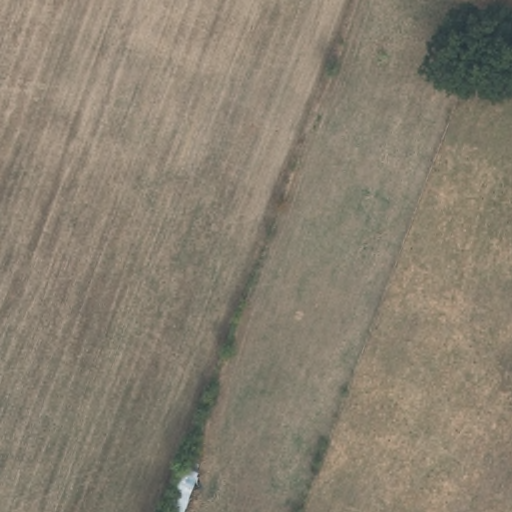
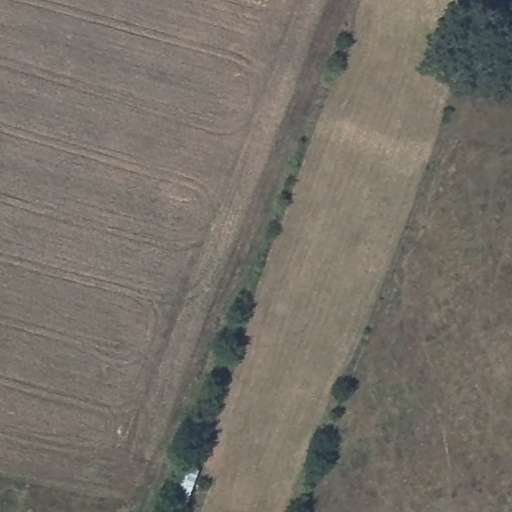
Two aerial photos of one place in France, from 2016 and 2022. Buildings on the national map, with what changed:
unchanged [(197,482),(185,512),(170,508),(180,478),(197,482)]

